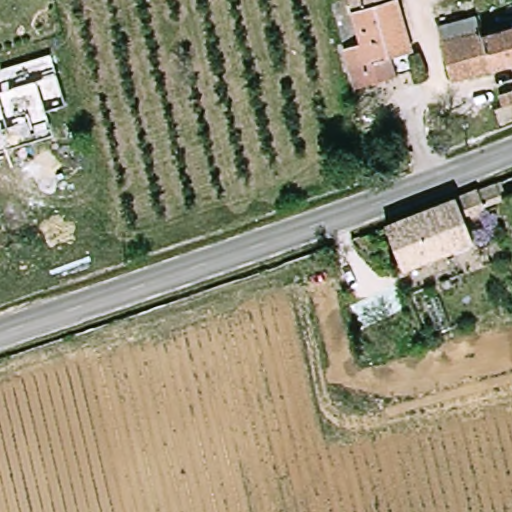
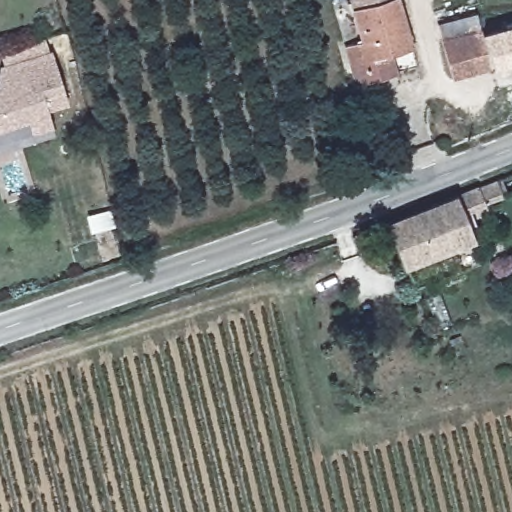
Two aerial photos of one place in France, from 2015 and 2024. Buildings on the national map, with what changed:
unchanged [(401,73),(394,75),(358,85),(348,45),(361,41),(350,0),(402,0),(414,44),(417,52),(398,57),(401,73)]
unchanged [(453,79),(440,26),(479,16),(484,36),(512,28),(512,64),(453,79)]
new [(46,112),(53,131),(35,137),(28,121),(0,130),(0,66),(50,50),(68,105),(46,112)]
unchanged [(484,206),(464,215),(475,242),(407,270),(390,229),(405,222),(426,214),(480,192),(484,206)]

